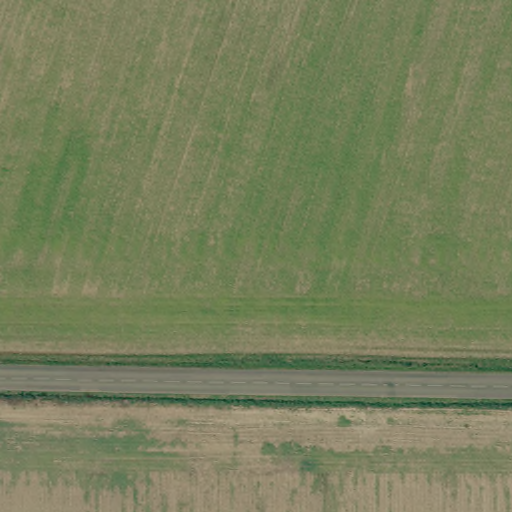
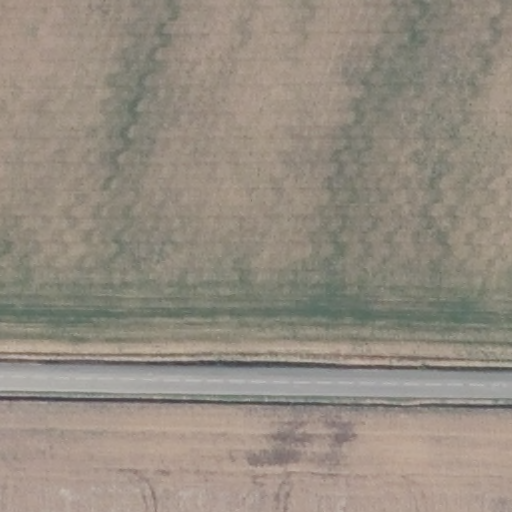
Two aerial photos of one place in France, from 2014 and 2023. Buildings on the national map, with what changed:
[]

